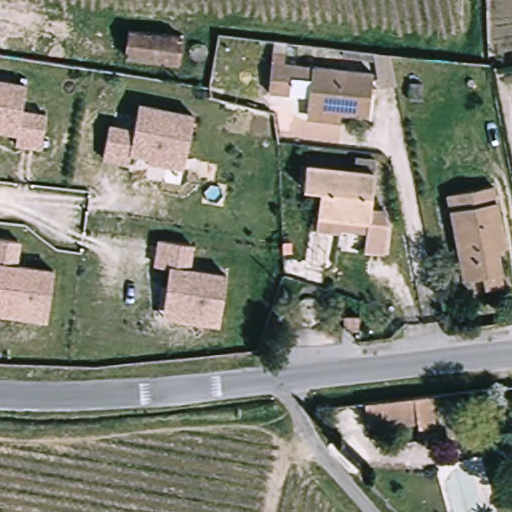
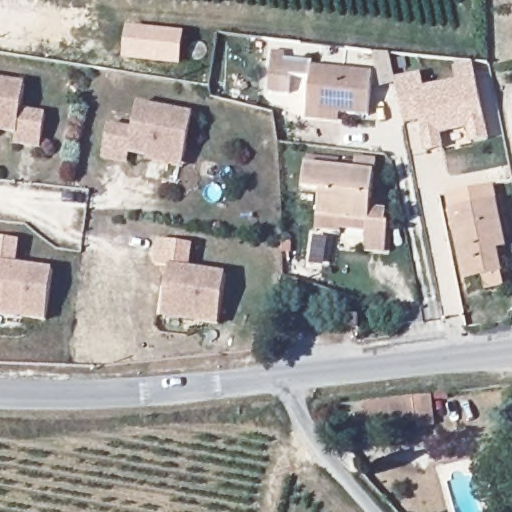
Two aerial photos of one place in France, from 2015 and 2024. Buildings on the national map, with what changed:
unchanged [(131,30),(176,37),(172,62),(126,56),(131,30)]
unchanged [(387,53),(392,79),(393,82),(378,85),(371,51),(387,53)]
unchanged [(301,113),(302,105),(306,74),(287,71),(284,89),(264,86),(269,56),(369,71),(363,115),(333,110),(331,117),(301,113)]
new [(474,64),(490,140),(471,144),(467,129),(442,135),(446,150),(426,154),(419,122),(407,125),(395,79),(422,75),(425,89),(459,81),(456,64),(474,64)]
unchanged [(21,113),(46,116),(41,150),(15,145),(16,135),(0,133),(0,84),(25,87),(21,113)]
unchanged [(146,154),(146,149),(128,146),(125,155),(100,151),(105,119),(130,123),(134,97),(190,107),(183,150),(181,160),(146,154)]
unchanged [(321,209),(324,184),(304,180),(308,154),(376,165),(371,204),(386,207),(380,235),(365,232),(318,223),(321,209)]
unchanged [(501,258),(504,278),(467,286),(456,227),(451,200),(461,197),(498,189),(509,240),(512,255),(501,258)]
unchanged [(161,302),(167,262),(153,260),(156,235),(189,239),(186,264),(224,269),(217,318),(194,315),(161,311),(161,302)]
unchanged [(0,262),(0,236),(23,240),(19,264),(58,270),(50,319),(27,316),(0,312),(0,266),(0,262)]
unchanged [(431,393),(432,423),(381,426),(381,399),(431,393)]

